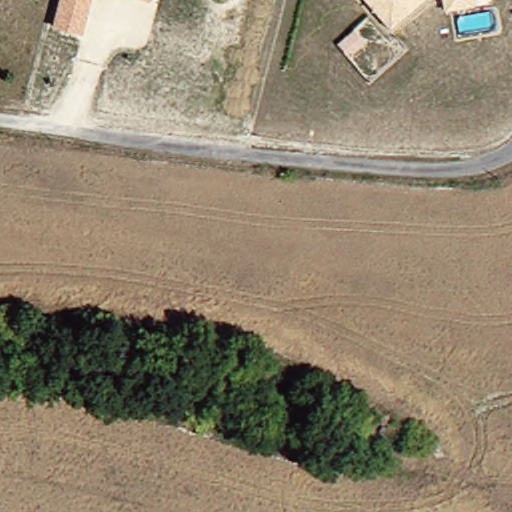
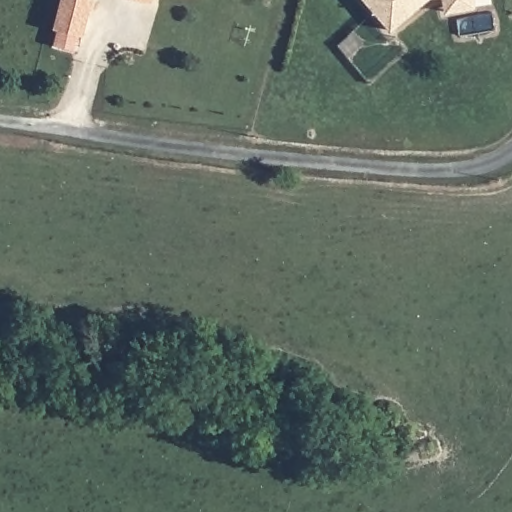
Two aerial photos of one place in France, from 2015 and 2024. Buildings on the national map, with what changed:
unchanged [(52,29),(59,0),(93,0),(84,35),(52,29)]
unchanged [(140,0),(152,0),(151,2),(140,0)]
unchanged [(362,0),(422,0),(387,30),(362,0)]
unchanged [(440,0),(470,0),(470,7),(442,12),(440,0)]
unchanged [(364,45),(345,60),(332,42),(352,27),(364,45)]

